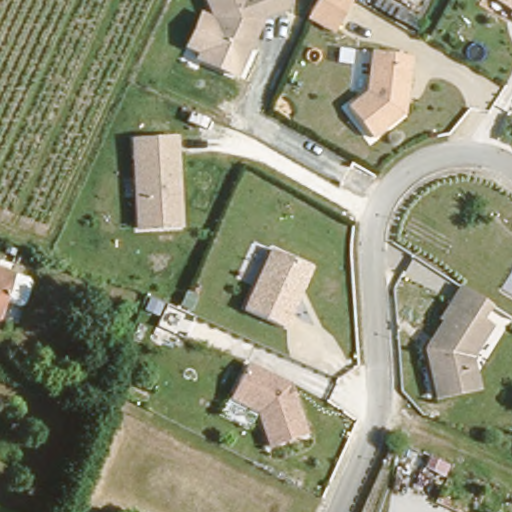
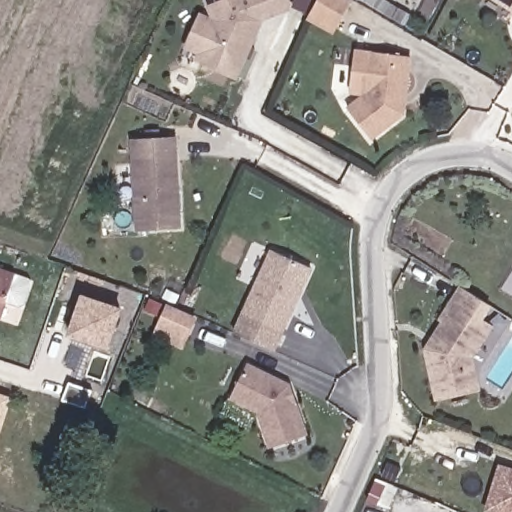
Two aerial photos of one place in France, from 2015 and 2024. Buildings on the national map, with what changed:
unchanged [(201,54),(204,47),(190,41),(203,11),(217,17),(217,15),(212,0),(291,0),(292,1),(262,14),(262,15),(238,71),(201,54)]
new [(319,0),(349,0),(352,1),(337,28),(335,32),(309,19),(312,14),(319,0)]
demolished [(417,15),(395,2),(396,0),(426,0),(417,15)]
unchanged [(512,1),(511,0),(512,0),(512,1)]
unchanged [(373,135),(349,105),(368,90),(373,48),(411,53),(404,110),(373,135)]
unchanged [(136,229),(132,137),(174,134),(182,226),(136,229)]
unchanged [(280,327),(242,308),(271,249),(309,267),(280,327)]
unchanged [(15,270),(0,312),(0,265),(15,270)]
unchanged [(480,319),(491,326),(482,342),(471,360),(478,391),(438,400),(427,350),(446,320),(442,318),(462,287),(490,304),(480,319)]
new [(106,347),(66,335),(81,292),(124,307),(106,347)]
new [(166,303),(194,315),(185,337),(182,345),(154,334),(157,326),(166,303)]
unchanged [(246,365),(288,384),(306,437),(270,448),(259,412),(230,400),(246,365)]
new [(0,437),(0,392),(13,396),(0,437)]
new [(512,470),(512,512),(499,512),(488,508),(502,467),(512,470)]

